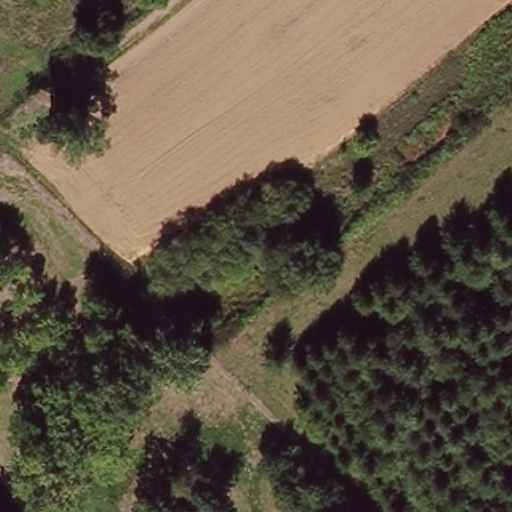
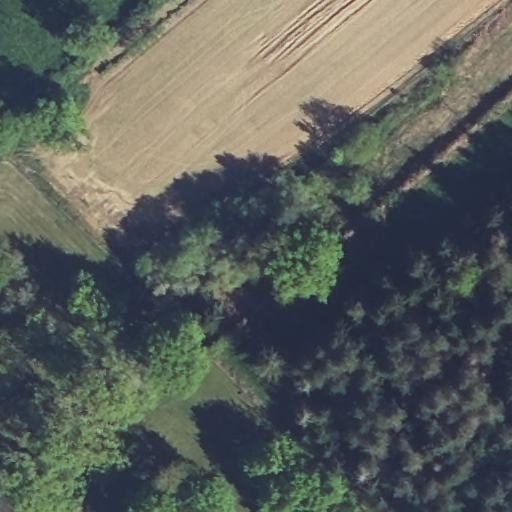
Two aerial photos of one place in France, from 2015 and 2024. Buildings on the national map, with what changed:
[]

